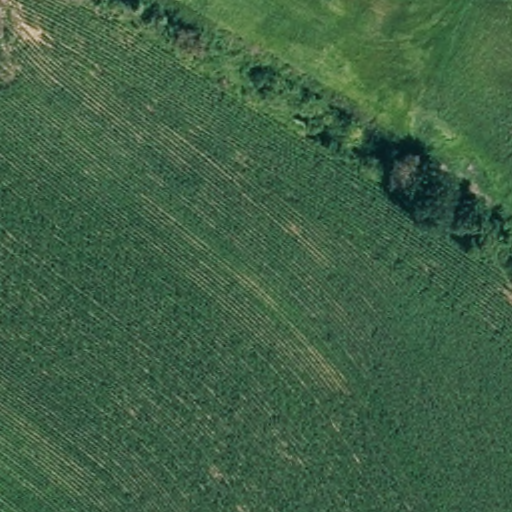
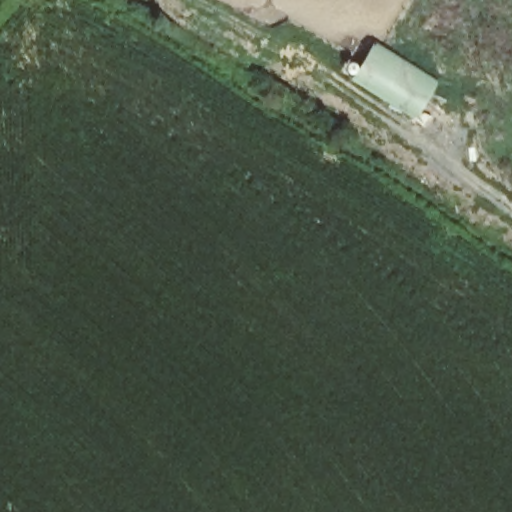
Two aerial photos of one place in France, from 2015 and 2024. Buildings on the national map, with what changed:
new [(438,77),(415,114),(352,76),(375,40),(438,77)]

